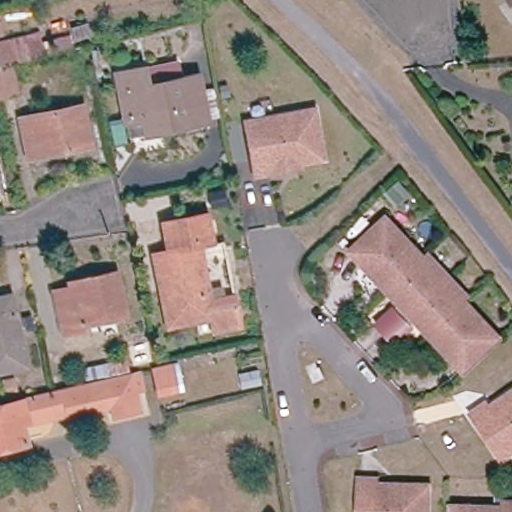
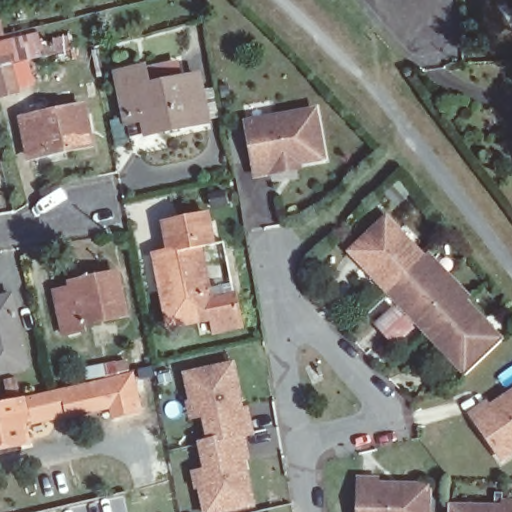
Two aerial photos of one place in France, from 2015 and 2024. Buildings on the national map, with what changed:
unchanged [(30,42),(34,60),(10,66),(17,95),(0,99),(0,49),(30,42)]
unchanged [(137,115),(126,69),(152,63),(156,80),(208,70),(217,116),(160,128),(141,131),(137,115)]
unchanged [(81,107),(91,147),(31,160),(21,120),(81,107)]
unchanged [(315,112),(323,160),(271,170),(272,174),(255,176),(246,125),(315,112)]
unchanged [(212,211),(219,243),(195,247),(152,255),(145,222),(212,211)]
unchanged [(413,331),(393,346),(375,328),(395,307),(347,258),(382,215),(469,298),(463,302),(500,342),(465,376),(413,331)]
unchanged [(209,332),(206,318),(165,325),(157,283),(152,255),(195,247),(219,243),(230,300),(235,328),(209,332)]
unchanged [(129,310),(89,320),(91,329),(74,332),(63,291),(80,288),(78,281),(102,276),(120,273),(129,310)]
unchanged [(10,294),(25,365),(0,372),(0,297),(10,294)]
new [(243,407),(248,405),(254,431),(245,435),(250,457),(245,458),(253,504),(207,512),(204,512),(200,485),(195,487),(191,469),(201,465),(197,440),(205,438),(200,415),(187,417),(184,400),(187,398),(183,372),(232,362),(243,407)]
unchanged [(147,378),(151,396),(145,397),(149,418),(125,423),(122,410),(117,410),(110,385),(140,380),(147,378)]
unchanged [(117,410),(31,430),(36,447),(0,456),(0,411),(31,403),(110,385),(117,410)]
unchanged [(490,409),(512,394),(512,453),(502,459),(473,413),(487,405),(490,409)]
unchanged [(376,480),(375,486),(428,487),(427,512),(358,512),(359,480),(376,480)]
unchanged [(445,506),(512,507),(512,512),(445,512),(445,506)]

